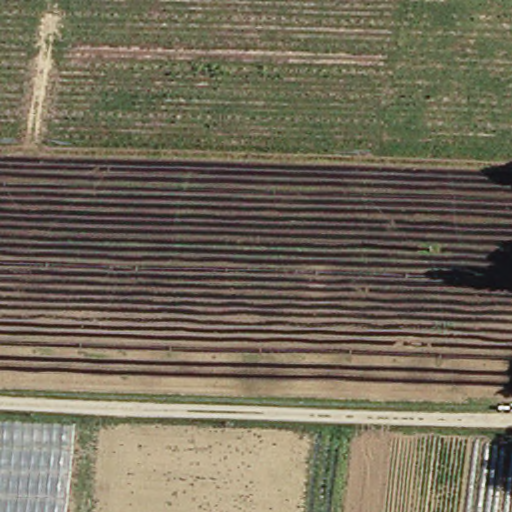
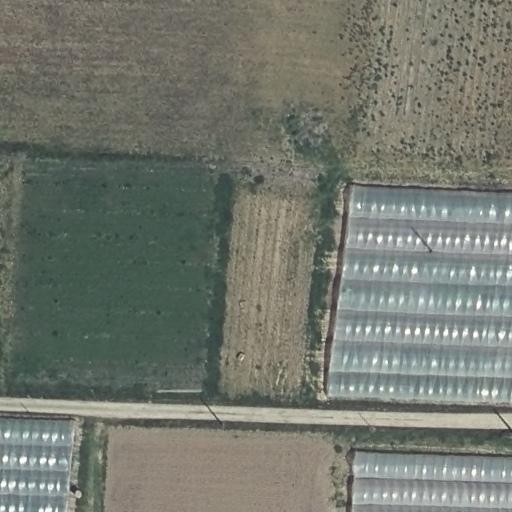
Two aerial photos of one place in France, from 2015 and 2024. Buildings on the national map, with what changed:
new [(329,395),(352,184),(512,191),(512,402),(329,395)]
new [(0,422),(76,426),(68,512),(0,512),(0,422)]
new [(355,452),(512,459),(512,512),(350,512),(355,452)]

